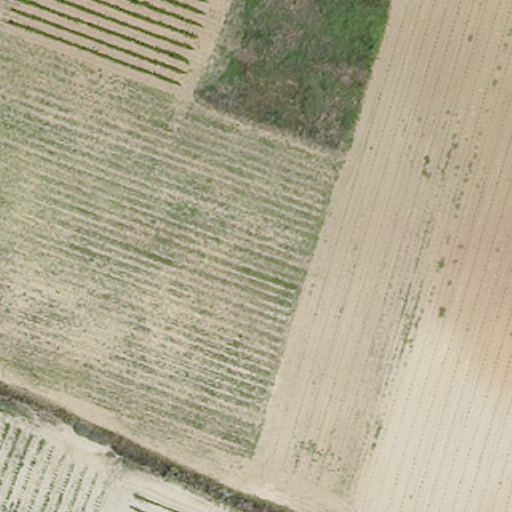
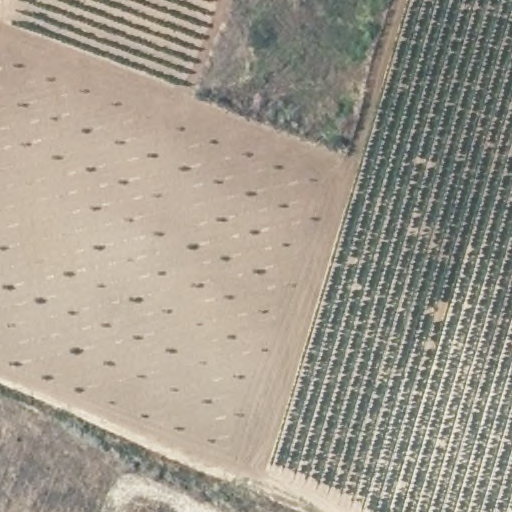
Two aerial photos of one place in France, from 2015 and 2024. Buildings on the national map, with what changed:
[]

